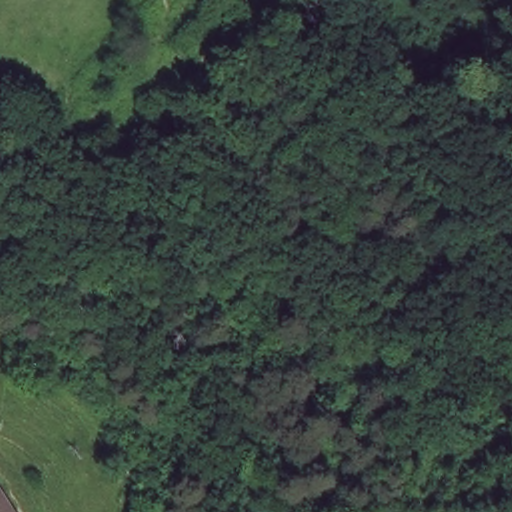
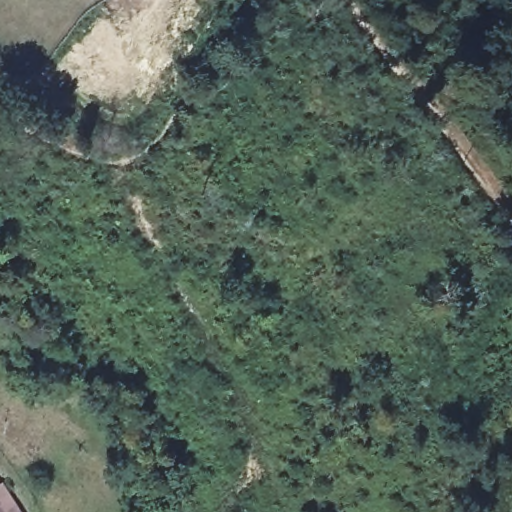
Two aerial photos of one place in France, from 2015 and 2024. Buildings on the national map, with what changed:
unchanged [(19,512),(0,512),(0,484),(19,512)]

